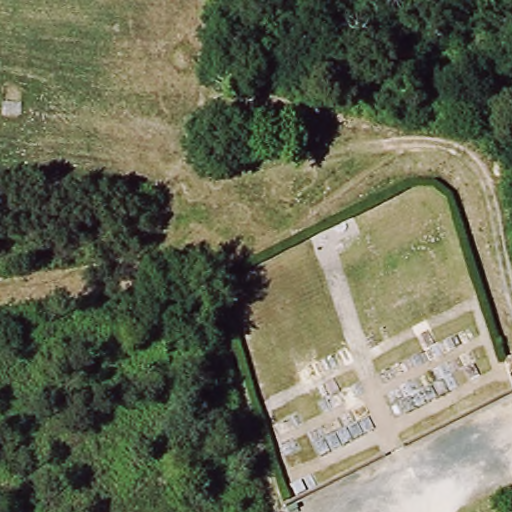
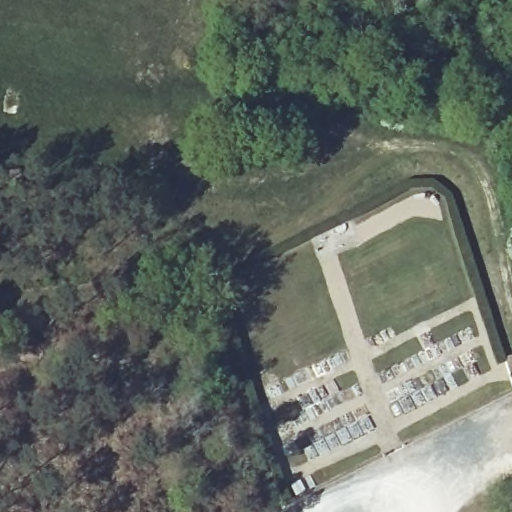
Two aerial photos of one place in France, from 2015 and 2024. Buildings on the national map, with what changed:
unchanged [(501,356),(512,351),(512,366),(505,368),(501,356)]

